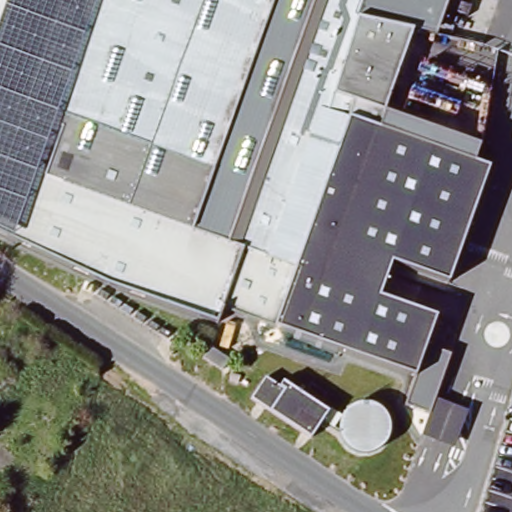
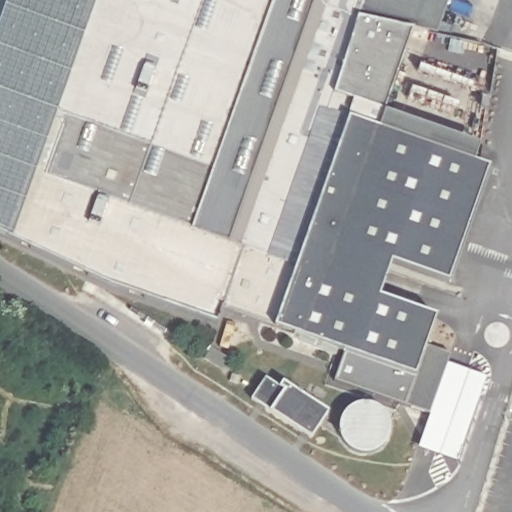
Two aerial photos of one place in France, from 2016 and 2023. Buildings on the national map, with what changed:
unchanged [(399,20),(413,25),(384,106),(359,99),(352,115),(490,160),(451,277),(397,258),(384,291),(439,311),(419,371),(276,321),(296,262),(192,225),(54,175),(48,185),(0,170),(0,22),(8,0),(406,0),(399,20)]
unchanged [(312,432),(273,406),(253,394),(269,370),(291,380),(331,404),(312,432)]
unchanged [(388,436),(379,444),(368,447),(355,447),(347,442),(343,431),(341,419),(346,408),(357,400),(372,397),(387,404),(393,413),(388,436)]

